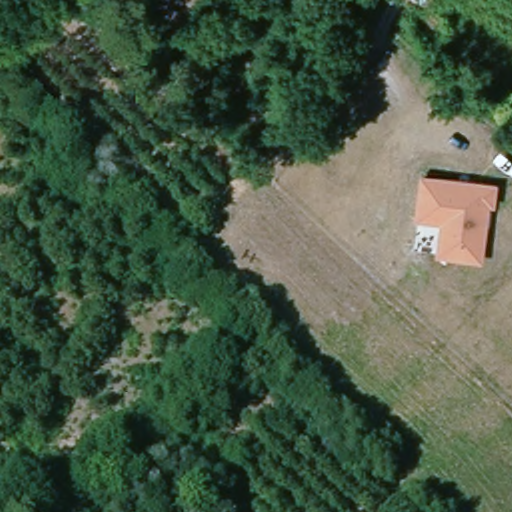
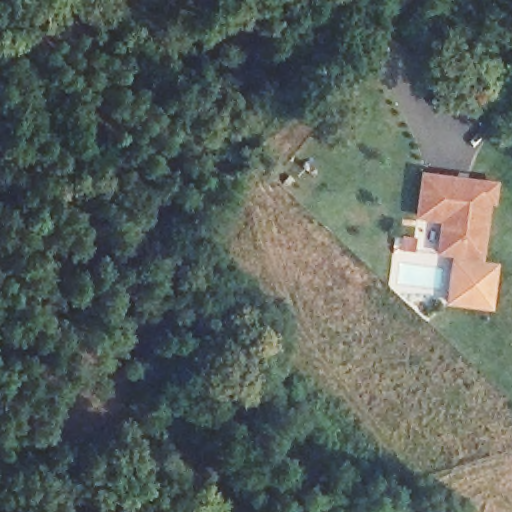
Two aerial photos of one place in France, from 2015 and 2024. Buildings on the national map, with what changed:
unchanged [(479,258),(435,254),(439,224),(416,222),(417,212),(421,177),(444,180),(492,185),(490,202),(485,202),(479,258)]
new [(479,258),(499,262),(493,311),(445,304),(452,256),(479,258)]

